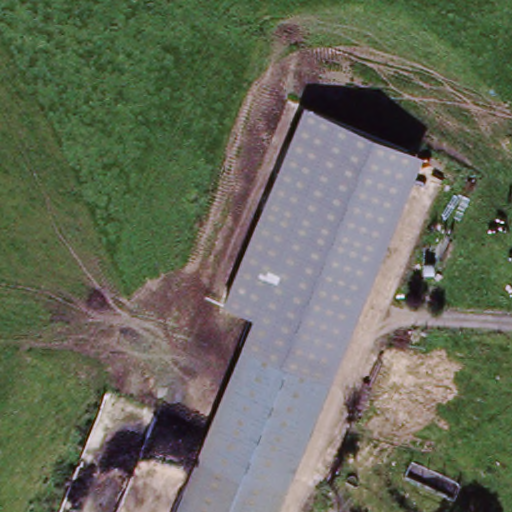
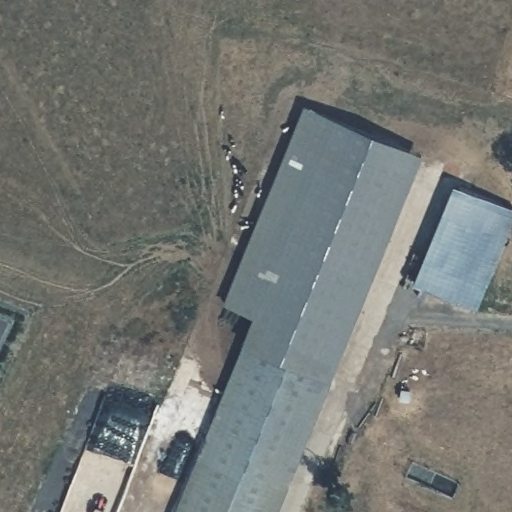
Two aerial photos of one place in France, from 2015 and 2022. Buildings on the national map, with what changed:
unchanged [(303,104),(417,150),(327,381),(247,348),(238,345),(251,312),(223,300),(303,104)]
new [(512,213),(512,219),(476,309),(413,290),(455,192),(512,213)]
unchanged [(266,512),(178,512),(244,350),(320,380),(266,512)]

